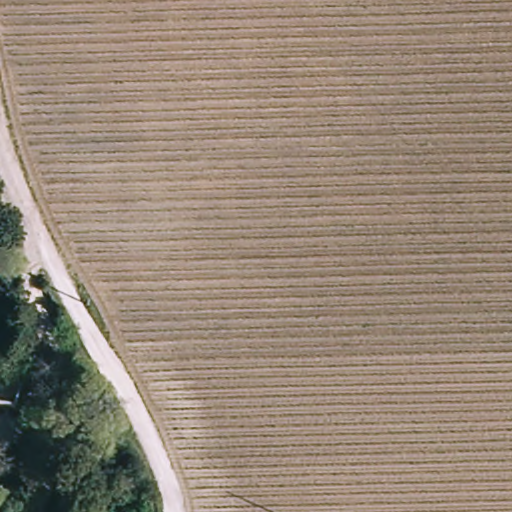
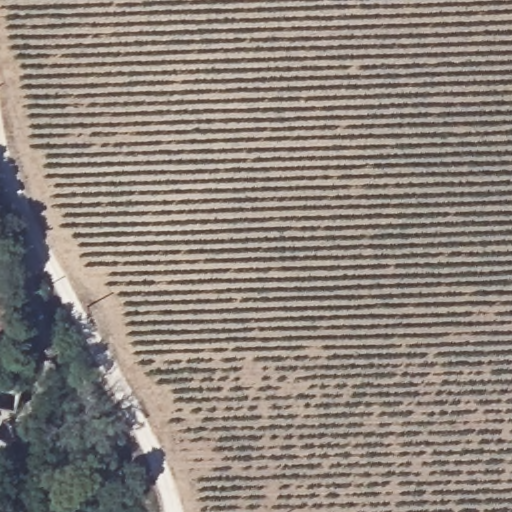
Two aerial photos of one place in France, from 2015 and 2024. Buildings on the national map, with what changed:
unchanged [(0,336),(0,322),(5,325),(0,336)]
unchanged [(0,357),(35,373),(29,386),(0,373),(0,357)]
unchanged [(25,431),(0,420),(0,383),(40,401),(25,431)]

